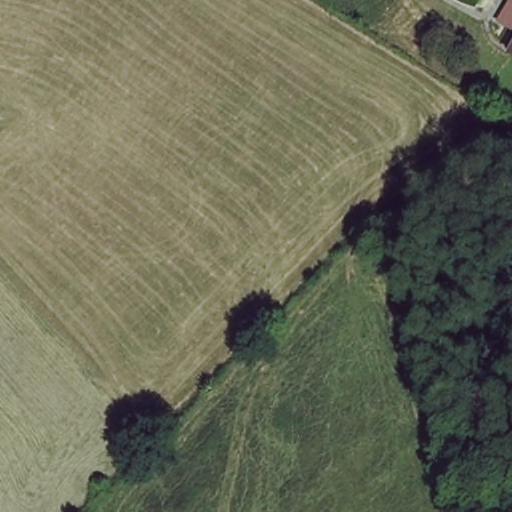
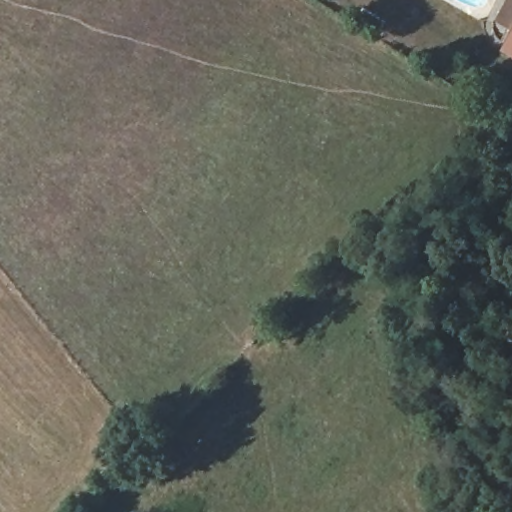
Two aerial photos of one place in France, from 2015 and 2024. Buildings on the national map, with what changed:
unchanged [(512,44),(512,47),(511,46),(512,44)]

